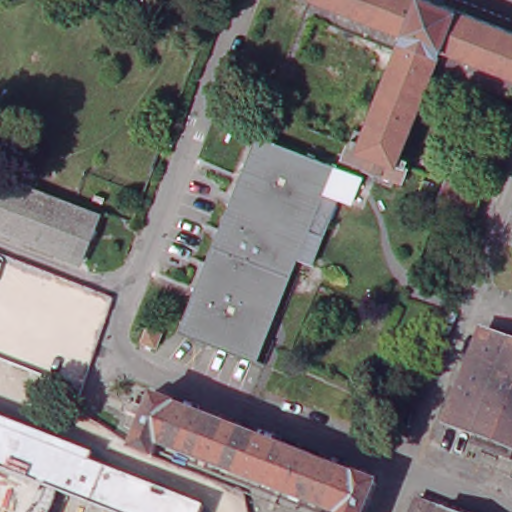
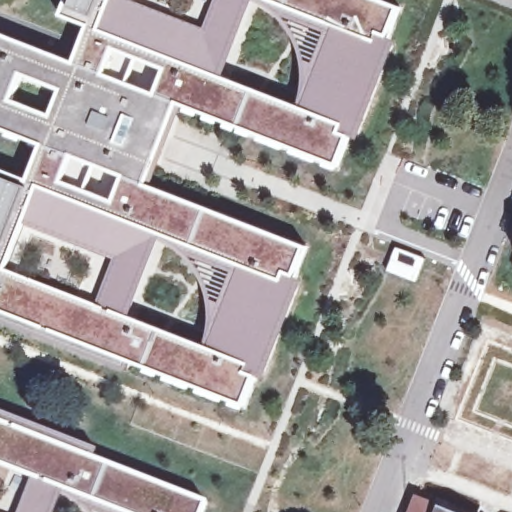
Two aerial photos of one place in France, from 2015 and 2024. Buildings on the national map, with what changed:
new [(0,130),(0,34),(73,63),(88,26),(60,15),(67,0),(381,0),(398,6),(386,37),(396,40),(358,140),(347,135),(336,164),(183,104),(151,185),(305,245),(293,277),(303,280),(265,380),(255,376),(242,405),(129,362),(127,369),(0,319),(0,171),(0,170),(27,179),(41,145),(0,130)]
demolished [(316,0),(441,0),(512,28),(512,94),(440,66),(408,146),(416,149),(414,157),(415,157),(412,165),(413,166),(407,180),(351,158),(357,144),(355,143),(358,135),(360,136),(363,128),(372,131),(406,48),(311,12),(316,0)]
demolished [(200,293),(213,260),(224,234),(226,227),(237,201),(248,173),(263,134),(342,164),(305,258),(265,359),(186,329),(200,293)]
demolished [(82,261),(0,230),(0,176),(101,215),(82,261)]
demolished [(447,181),(483,195),(475,213),(440,200),(447,181)]
demolished [(46,281),(68,290),(42,356),(31,352),(34,347),(22,342),(30,323),(0,311),(0,266),(45,284),(46,281)]
demolished [(489,330),(512,339),(512,456),(479,443),(484,430),(454,418),(489,330)]
demolished [(132,424),(146,391),(157,396),(159,392),(181,401),(181,403),(361,474),(362,472),(383,481),(371,512),(347,512),(207,458),(176,445),(165,441),(160,455),(139,447),(146,430),(132,424)]
new [(93,459),(205,502),(202,512),(85,512),(80,507),(60,497),(54,512),(0,512),(0,412),(96,450),(93,459)]
unchanged [(451,512),(419,512),(424,500),(451,512)]

